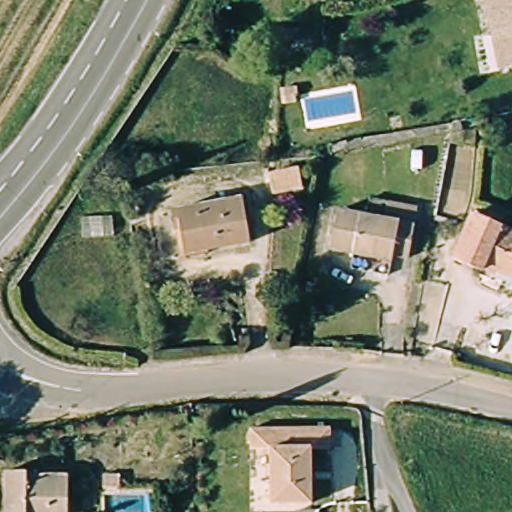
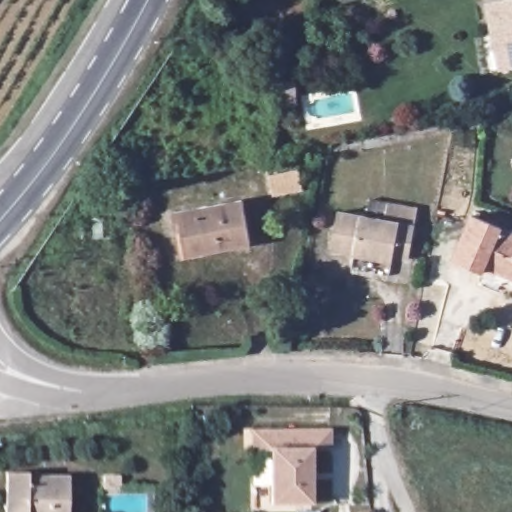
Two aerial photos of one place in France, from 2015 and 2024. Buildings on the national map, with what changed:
unchanged [(501,0),(512,0),(512,70),(502,72),(495,35),(487,36),(483,15),(481,4),(501,0)]
unchanged [(252,239),(191,253),(183,232),(176,233),(173,214),(242,199),(252,239)]
unchanged [(485,272),(458,259),(476,216),(512,231),(512,275),(488,265),(485,272)]
unchanged [(416,230),(410,260),(401,259),(398,264),(335,252),(341,217),(416,230)]
unchanged [(331,454),(312,454),(309,505),(267,503),(271,450),(254,449),(254,428),(272,428),(332,431),(331,454)]
unchanged [(11,477),(33,479),(33,484),(72,487),(70,512),(8,512),(11,477)]

